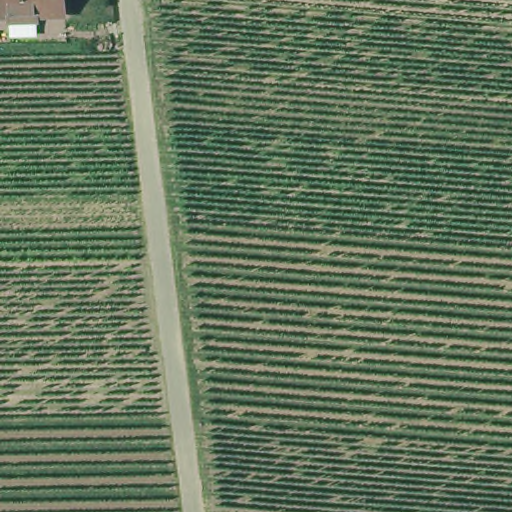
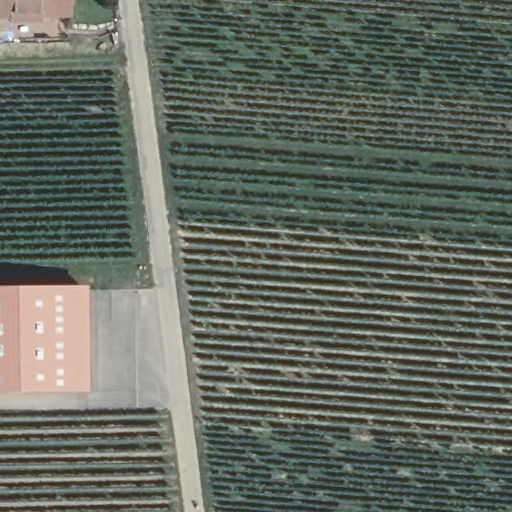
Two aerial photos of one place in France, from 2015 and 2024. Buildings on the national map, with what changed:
unchanged [(10,19),(10,13),(0,13),(0,0),(66,0),(67,12),(62,12),(42,13),(42,19),(10,19)]
new [(66,386),(64,286),(83,285),(86,386),(66,386)]
new [(66,386),(0,388),(0,288),(64,286),(66,386)]

